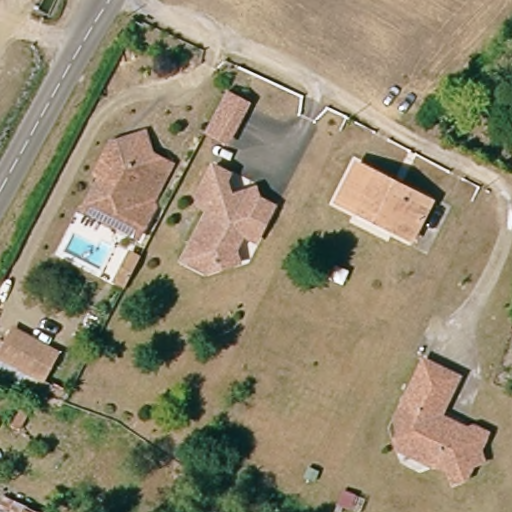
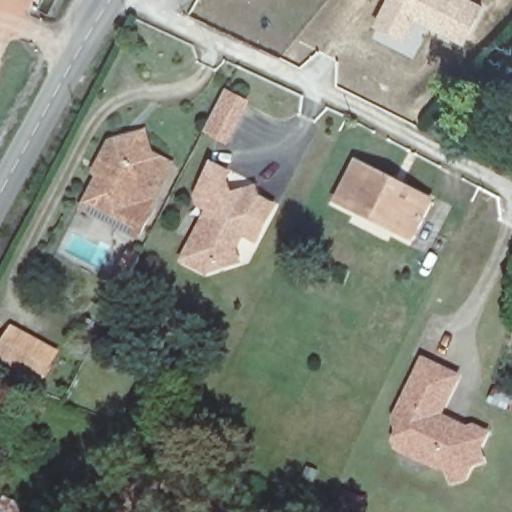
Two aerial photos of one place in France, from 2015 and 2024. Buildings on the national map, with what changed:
new [(487,4),(466,45),(419,20),(408,42),(374,26),(387,0),(477,0),(487,4)]
unchanged [(250,102),(226,144),(205,133),(229,90),(250,102)]
unchanged [(150,131),(155,157),(171,164),(150,208),(151,209),(137,238),(85,206),(106,172),(111,175),(116,167),(111,139),(150,131)]
unchanged [(186,261),(191,253),(211,220),(202,214),(198,197),(217,164),(237,175),(229,190),(240,196),(256,188),(264,191),(263,203),(281,213),(264,243),(249,249),(247,257),(217,268),(205,273),(186,261)]
unchanged [(379,182),(381,177),(435,199),(418,241),(387,228),(389,217),(368,208),(363,218),(340,207),(356,171),(379,182)]
unchanged [(128,253),(116,274),(102,266),(114,245),(128,253)]
unchanged [(90,305),(83,317),(68,308),(75,296),(90,305)]
unchanged [(51,368),(46,378),(2,355),(15,331),(45,347),(58,355),(51,368)]
unchanged [(461,378),(443,412),(481,432),(486,425),(503,434),(495,450),(500,465),(481,472),(478,483),(456,491),(447,467),(435,460),(432,465),(405,451),(406,437),(402,426),(410,409),(433,364),(461,378)]
unchanged [(15,414),(0,408),(0,390),(21,399),(15,414)]
unchanged [(45,512),(1,512),(8,494),(45,512)]

